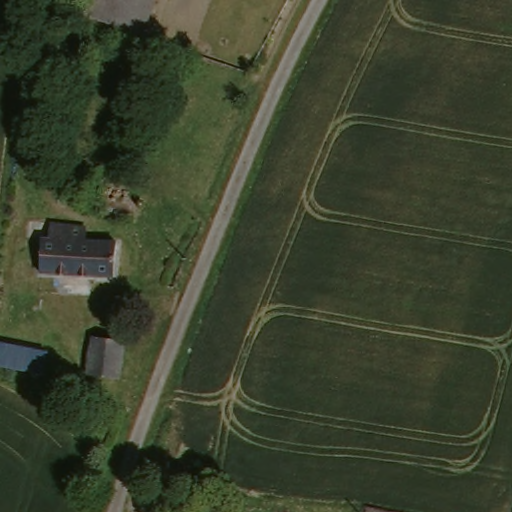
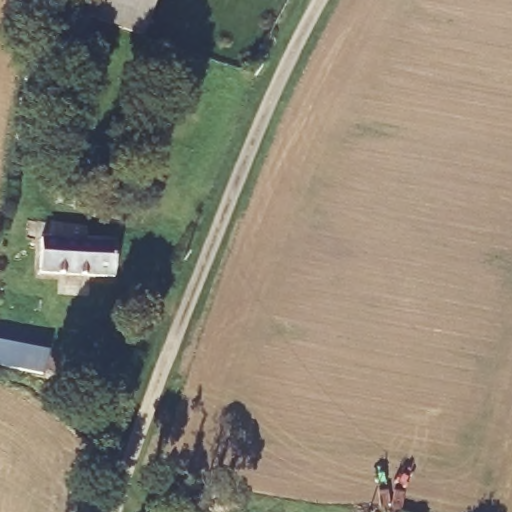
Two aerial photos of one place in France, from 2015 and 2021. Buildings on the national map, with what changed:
unchanged [(81,17),(87,0),(151,0),(139,37),(81,17)]
unchanged [(86,230),(86,245),(117,248),(115,278),(42,272),(44,241),(49,242),(51,225),(86,230)]
unchanged [(118,345),(116,383),(86,380),(89,343),(118,345)]
unchanged [(49,354),(45,376),(0,368),(0,344),(49,354)]

